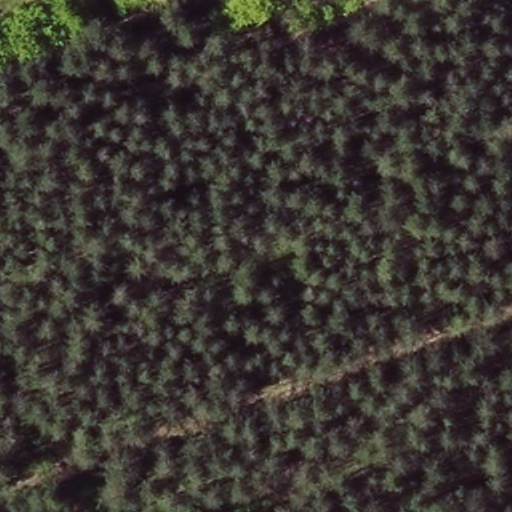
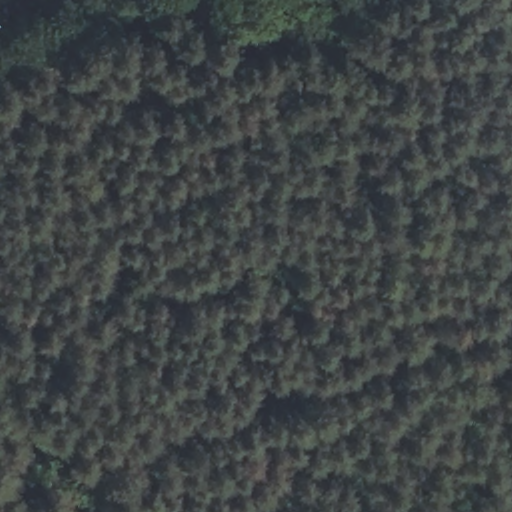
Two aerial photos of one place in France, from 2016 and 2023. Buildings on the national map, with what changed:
[]

